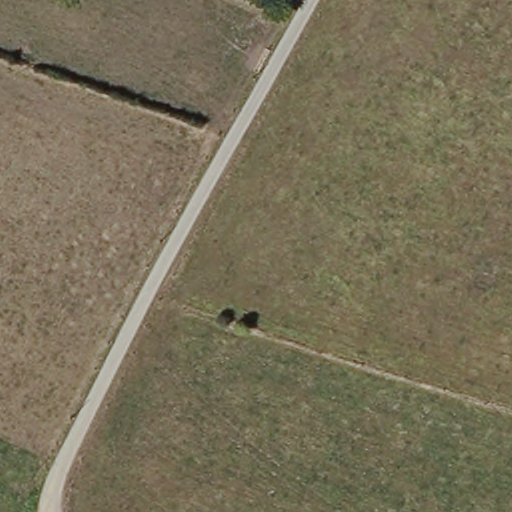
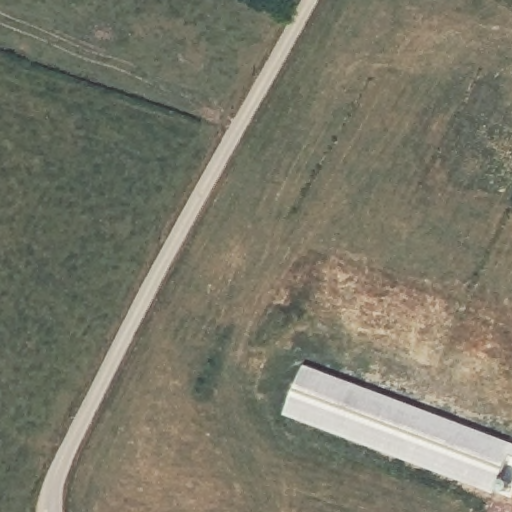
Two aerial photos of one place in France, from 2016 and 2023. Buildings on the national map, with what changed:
new [(305,367),(512,448),(512,459),(499,493),(288,412),(305,367)]

